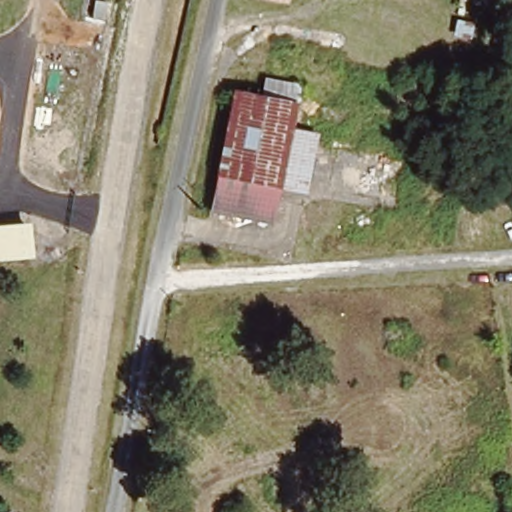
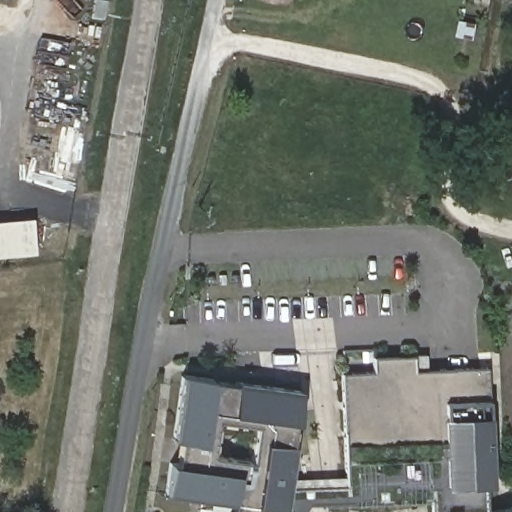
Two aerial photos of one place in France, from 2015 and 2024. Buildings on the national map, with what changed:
unchanged [(272,0),(290,0),(289,3),(272,0)]
demolished [(303,84),(298,101),(294,127),(318,132),(306,193),(281,189),(272,223),(211,208),(217,175),(216,174),(232,91),(261,94),(264,77),(303,84)]
new [(415,103),(442,108),(435,131),(410,125),(415,103)]
unchanged [(0,220),(34,216),(37,240),(35,256),(0,260),(0,220)]
new [(232,502),(166,492),(171,463),(179,464),(182,440),(174,440),(182,375),(302,389),(288,489),(348,485),(342,373),(375,372),(373,356),(408,355),(410,370),(488,367),(490,400),(493,486),(487,486),(488,512),(435,512),(435,499),(310,504),(305,512),(231,512),(232,502)]
new [(512,507),(512,512),(496,512),(512,507)]

